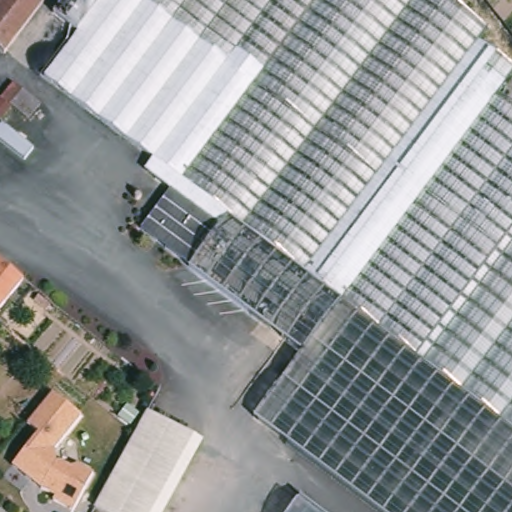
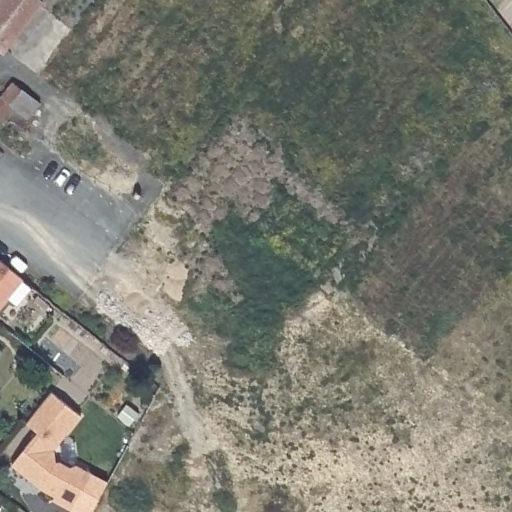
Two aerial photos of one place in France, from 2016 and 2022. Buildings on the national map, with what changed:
unchanged [(3,0),(52,0),(45,9),(0,57),(0,3),(3,0)]
demolished [(475,41),(512,70),(512,73),(496,94),(512,106),(512,512),(380,512),(328,474),(256,421),(303,357),(229,302),(187,270),(188,268),(140,232),(167,193),(141,174),(150,164),(40,82),(74,36),(48,17),(61,0),(440,0),(483,31),(475,41)]
unchanged [(16,75),(28,83),(26,84),(42,95),(32,110),(15,99),(2,114),(0,112),(0,95),(3,91),(16,75)]
unchanged [(0,307),(0,262),(24,282),(0,307)]
unchanged [(55,448),(57,461),(64,461),(73,467),(80,465),(96,473),(74,511),(54,501),(56,497),(41,489),(12,467),(38,433),(26,424),(53,392),(84,417),(55,448)]
demolished [(314,512),(297,512),(303,504),(314,512)]

